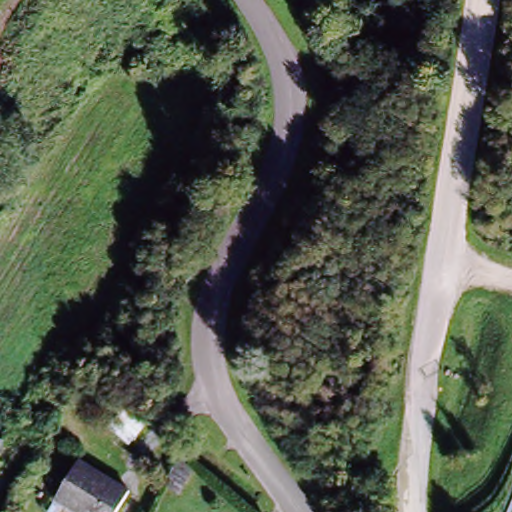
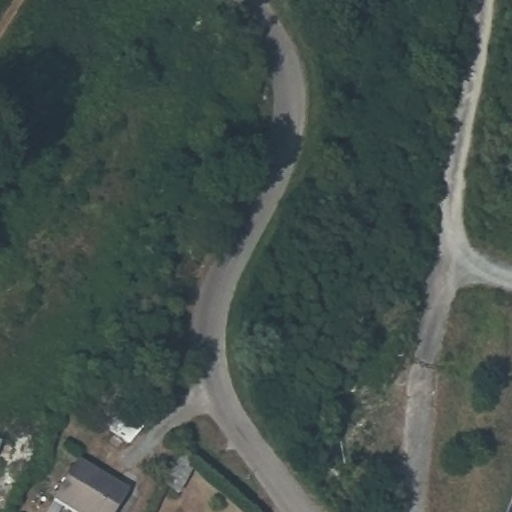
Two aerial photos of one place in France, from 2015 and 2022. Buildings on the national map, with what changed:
unchanged [(55,500),(76,460),(129,489),(117,512),(76,512),(55,500)]

